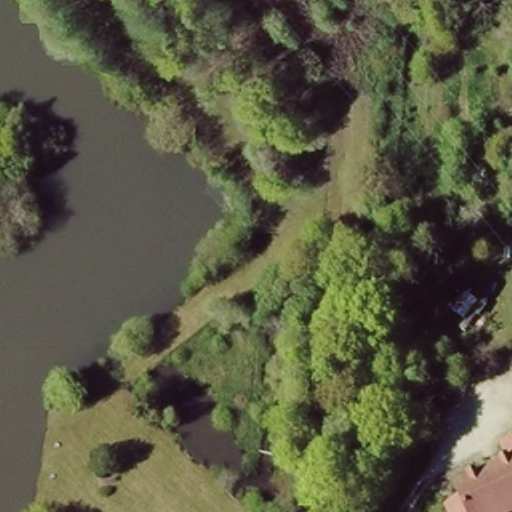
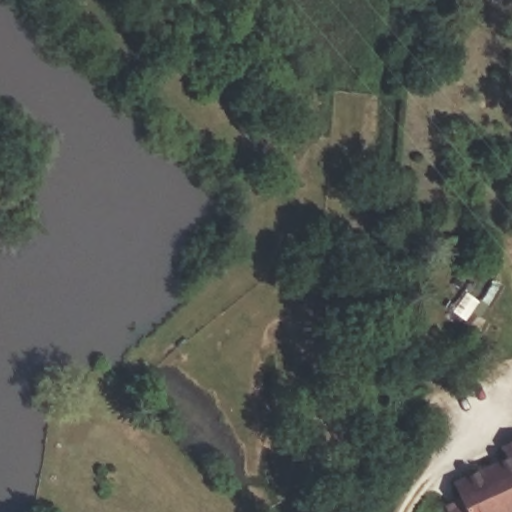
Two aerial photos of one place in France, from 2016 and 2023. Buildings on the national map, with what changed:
unchanged [(512,446),(512,512),(459,512),(445,475),(512,446)]

